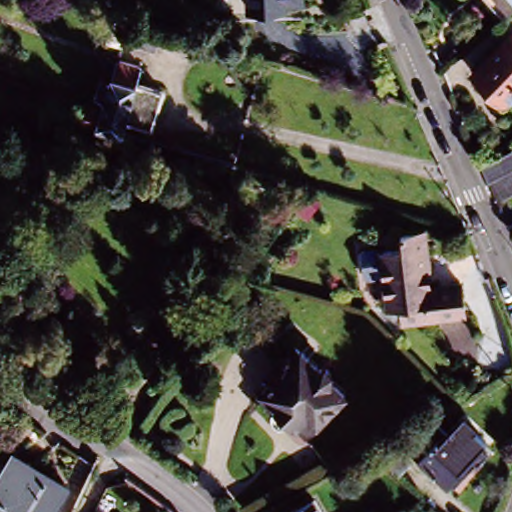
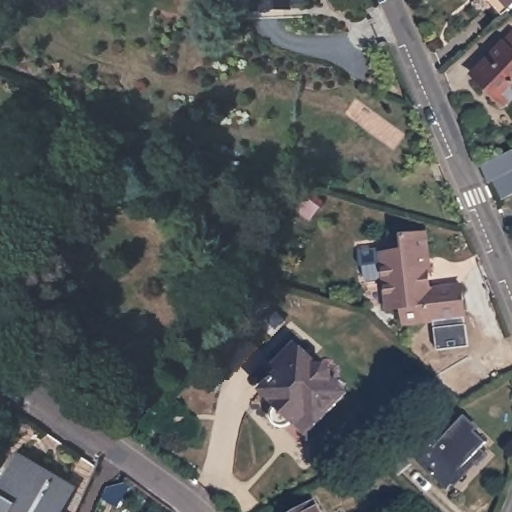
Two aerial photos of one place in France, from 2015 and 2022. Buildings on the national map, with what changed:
unchanged [(276,4),(276,10),(241,9),(241,0),(295,0),(295,5),(276,4)]
unchanged [(492,0),(503,0),(496,6),(492,0)]
unchanged [(152,38),(156,40),(151,54),(121,45),(118,51),(101,46),(108,25),(152,38)]
unchanged [(512,38),(512,98),(500,110),(467,77),(508,35),(512,38)]
unchanged [(140,129),(123,124),(118,137),(115,136),(105,133),(94,130),(92,132),(74,127),(80,111),(98,116),(103,102),(91,99),(96,82),(107,86),(110,80),(102,78),(107,61),(110,62),(110,59),(116,60),(115,64),(139,71),(135,87),(161,96),(154,119),(150,132),(140,129)]
unchanged [(487,185),(480,168),(512,154),(512,173),(511,173),(512,175),(512,196),(502,201),(493,182),(487,185)]
unchanged [(399,308),(385,310),(380,254),(403,252),(401,236),(427,235),(430,272),(428,272),(430,290),(462,286),(465,320),(400,326),(399,308)]
unchanged [(297,348),(318,370),(325,368),(331,375),(330,382),(345,397),(307,436),(292,419),(288,424),(279,426),(273,420),(273,412),(280,407),(266,392),(283,376),(277,368),(297,348)]
unchanged [(448,495),(415,462),(433,444),(449,429),(456,436),(481,461),(448,495)]
unchanged [(401,455),(411,443),(417,450),(407,461),(418,471),(409,482),(380,456),(390,445),(401,455)]
unchanged [(76,485),(58,512),(0,512),(0,477),(15,455),(76,485)]
unchanged [(308,497),(317,512),(283,512),(308,497)]
unchanged [(356,508),(358,512),(366,507),(368,512),(351,512),(356,508)]

